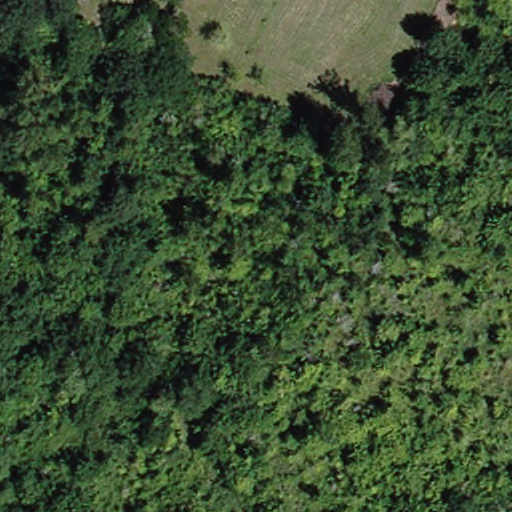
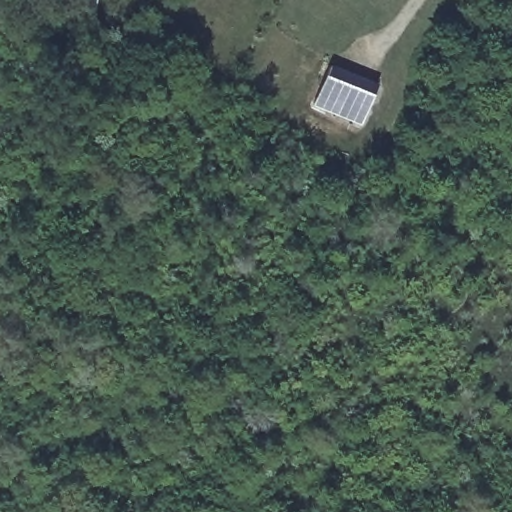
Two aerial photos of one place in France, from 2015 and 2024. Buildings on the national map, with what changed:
new [(331,68),(377,87),(360,125),(313,107),(331,68)]

